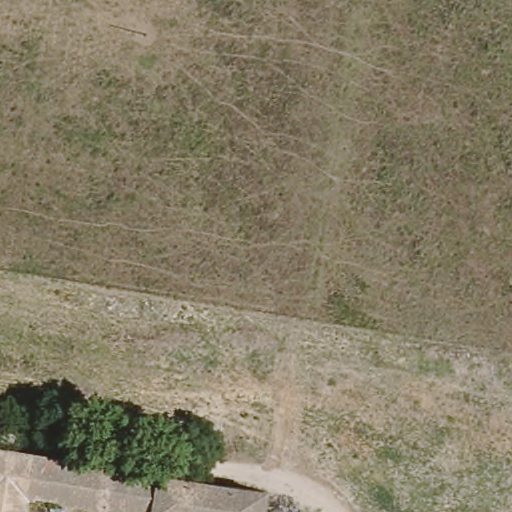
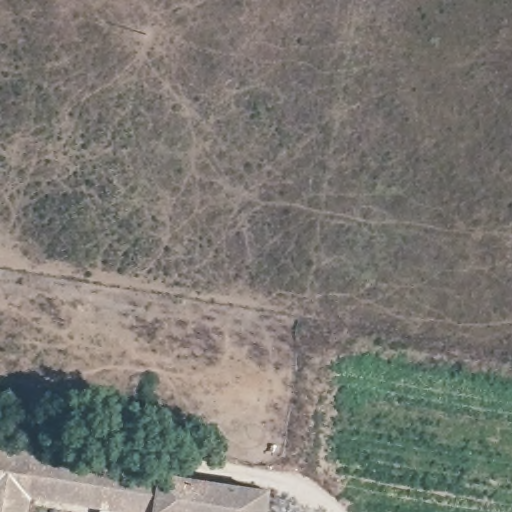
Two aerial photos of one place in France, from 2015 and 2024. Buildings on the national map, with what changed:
unchanged [(265,490),(261,512),(130,512),(28,495),(25,512),(0,512),(0,451),(265,490)]

